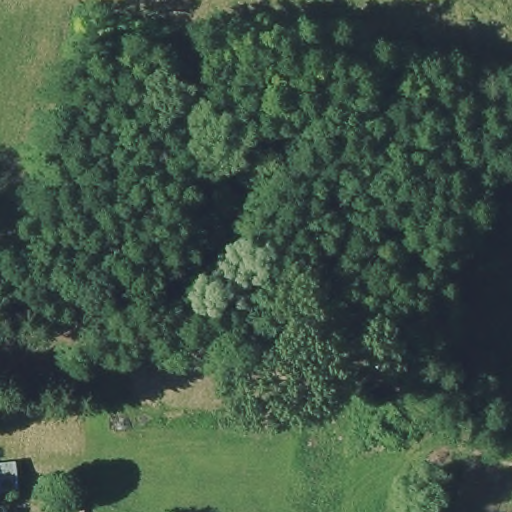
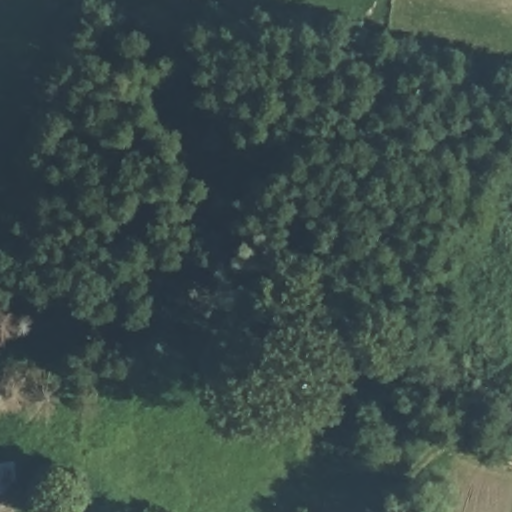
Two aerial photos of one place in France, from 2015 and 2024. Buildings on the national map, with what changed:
unchanged [(13,494),(0,495),(0,466),(14,465),(13,494)]

